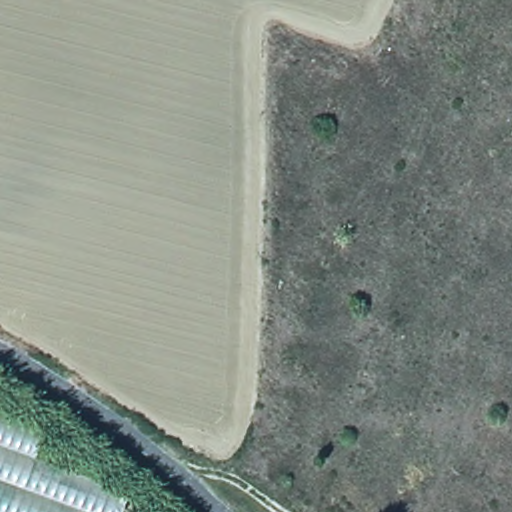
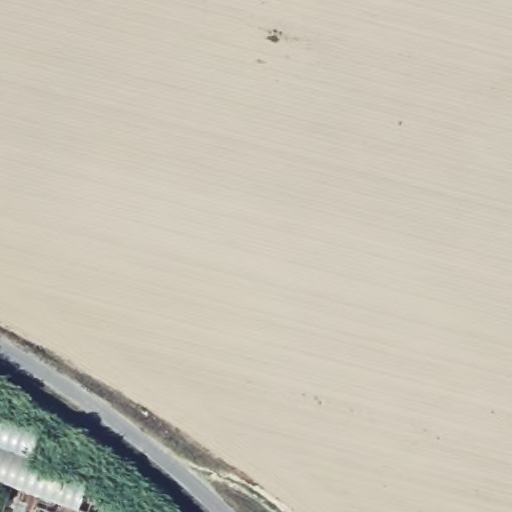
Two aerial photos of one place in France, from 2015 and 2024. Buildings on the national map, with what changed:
unchanged [(36,457),(128,492),(122,512),(0,512),(0,409),(47,425),(36,457)]

